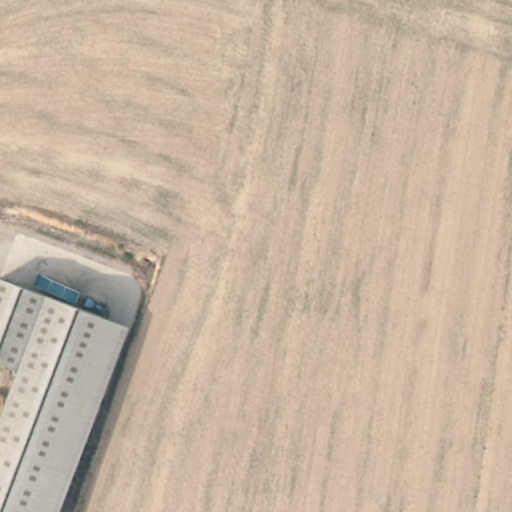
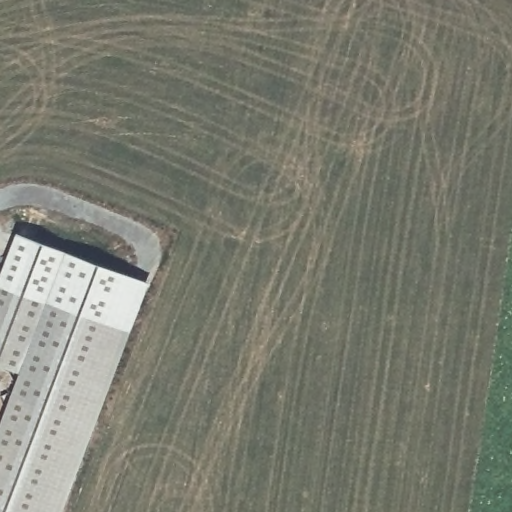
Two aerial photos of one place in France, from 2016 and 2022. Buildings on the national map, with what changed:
new [(132,330),(20,289),(0,283),(0,272),(14,233),(148,282),(132,330)]
unchanged [(20,289),(132,330),(66,512),(0,512),(0,440),(14,397),(22,373),(15,371),(0,366),(0,283),(20,289)]

